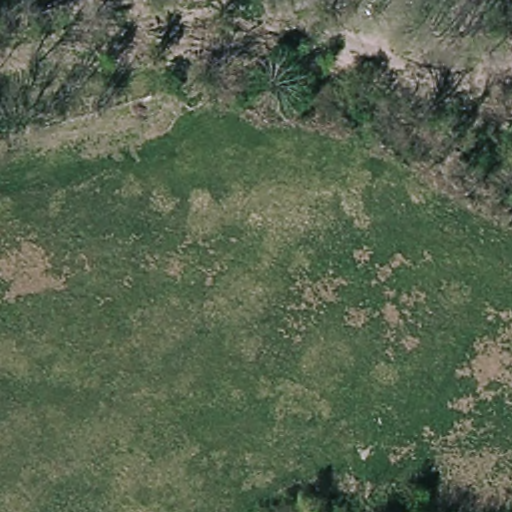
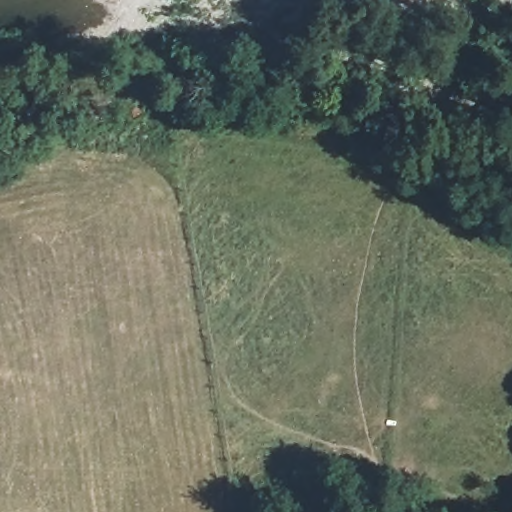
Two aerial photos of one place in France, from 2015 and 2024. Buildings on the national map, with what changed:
[]

